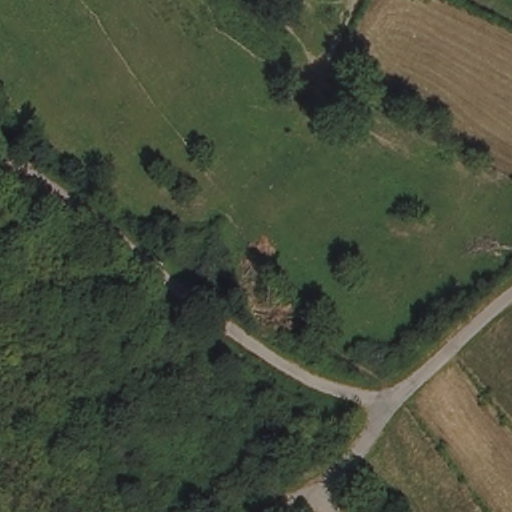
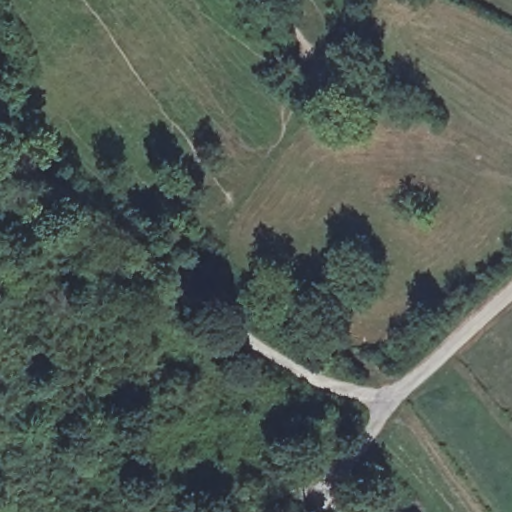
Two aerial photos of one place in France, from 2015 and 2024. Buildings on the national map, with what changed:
[]

